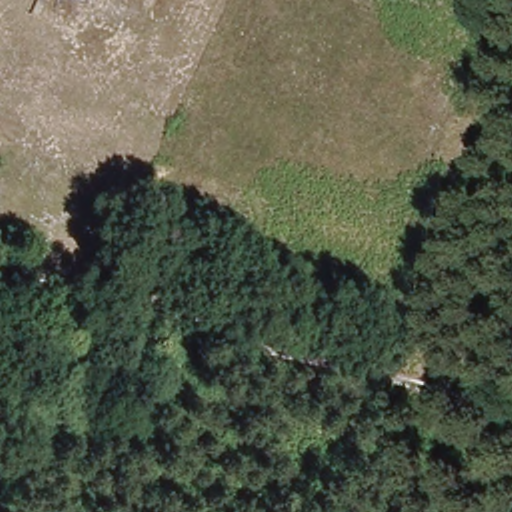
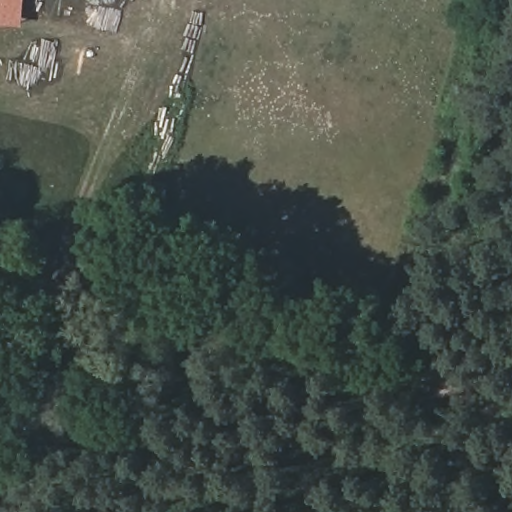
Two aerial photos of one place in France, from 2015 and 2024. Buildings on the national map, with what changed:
new [(19,25),(0,24),(0,0),(21,0),(19,25)]

